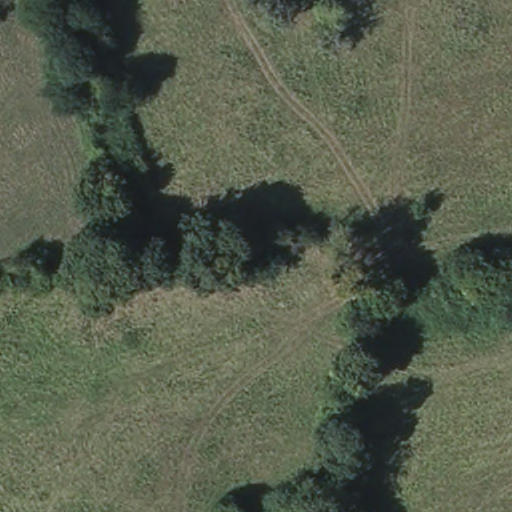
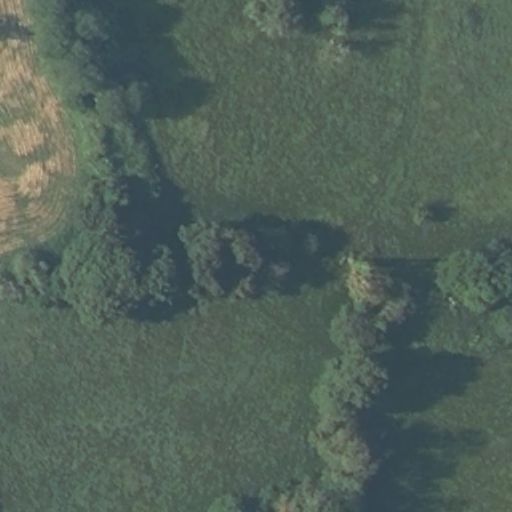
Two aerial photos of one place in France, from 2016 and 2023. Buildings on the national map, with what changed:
[]

